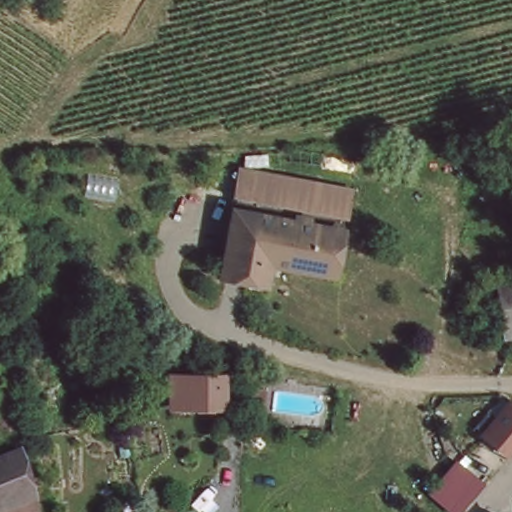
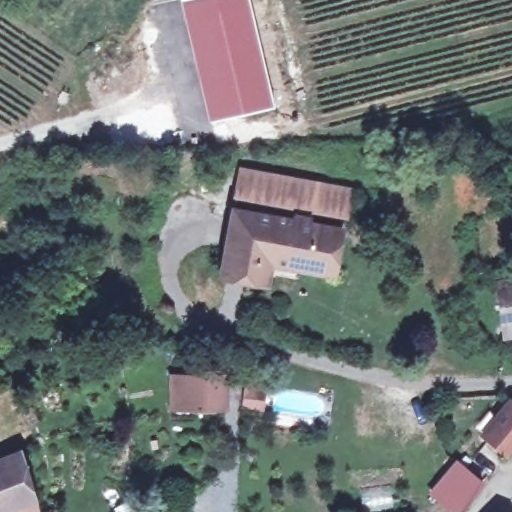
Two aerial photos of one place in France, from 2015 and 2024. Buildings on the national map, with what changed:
new [(276,107),(207,122),(179,0),(250,0),(276,107)]
unchanged [(328,277),(265,265),(260,286),(215,278),(218,256),(228,209),(235,172),(344,192),(337,229),(332,254),(328,277)]
unchanged [(500,279),(512,278),(512,332),(507,333),(500,279)]
unchanged [(231,407),(172,413),(167,375),(228,371),(231,407)]
unchanged [(512,422),(512,430),(496,455),(470,432),(490,403),(512,422)]
unchanged [(31,508),(20,512),(0,512),(0,459),(14,455),(31,508)]
unchanged [(458,469),(477,486),(456,512),(446,512),(433,500),(458,469)]

